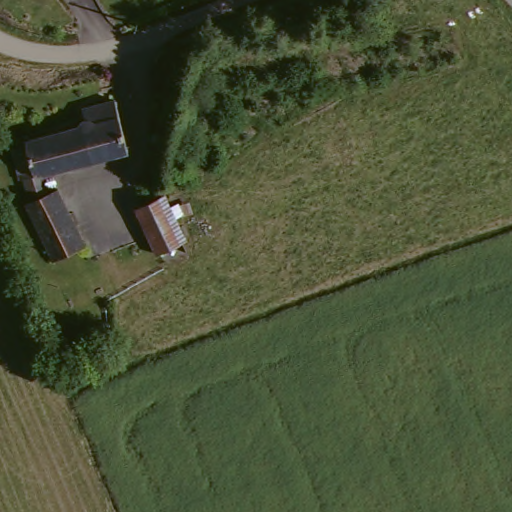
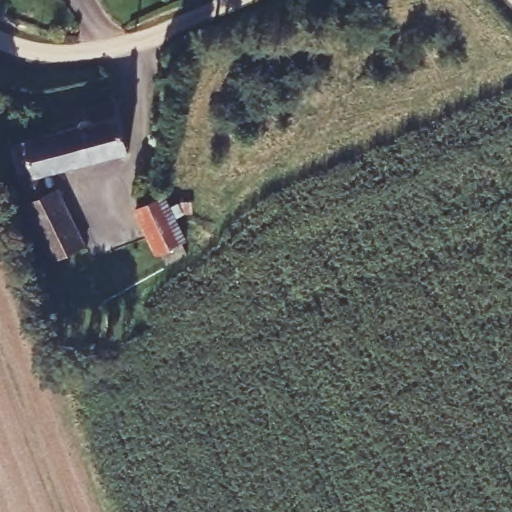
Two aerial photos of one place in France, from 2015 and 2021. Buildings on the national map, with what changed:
unchanged [(46,171),(54,187),(62,186),(91,240),(57,256),(27,199),(34,197),(13,142),(90,120),(84,103),(116,94),(134,147),(46,171)]
unchanged [(162,248),(160,245),(140,204),(149,199),(145,191),(160,184),(167,193),(171,192),(191,234),(162,248)]

